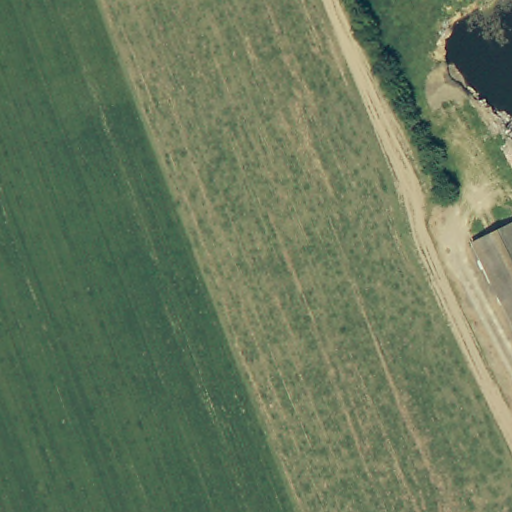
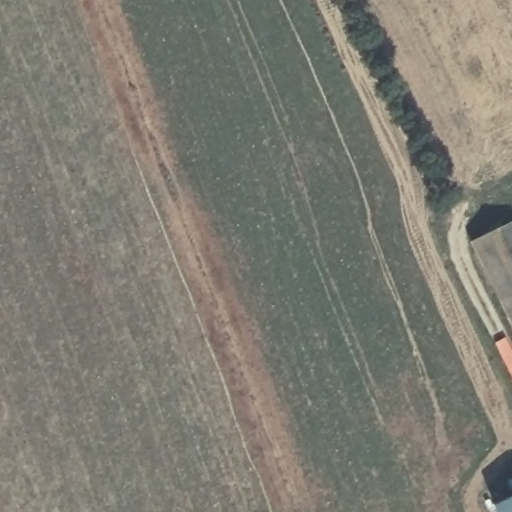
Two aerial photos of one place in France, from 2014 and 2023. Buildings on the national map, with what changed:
unchanged [(512,218),(512,318),(471,237),(512,218)]
new [(512,496),(512,512),(499,512),(495,505),(512,496)]

